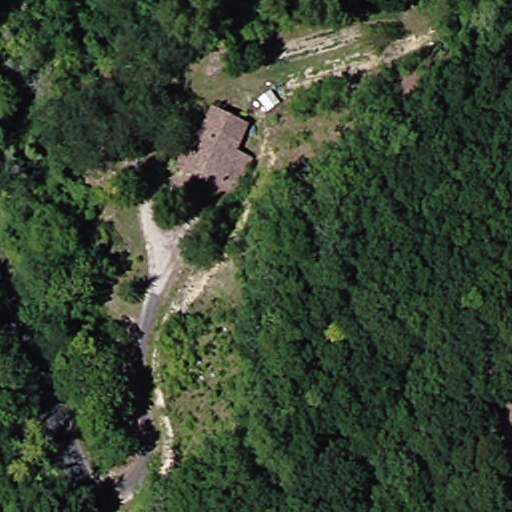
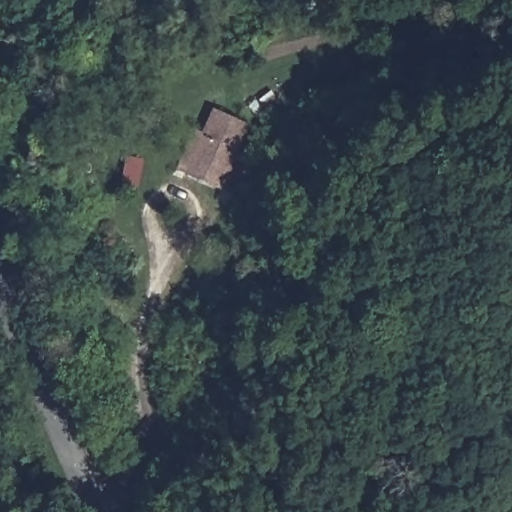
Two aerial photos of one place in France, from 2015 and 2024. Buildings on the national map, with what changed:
unchanged [(227,152),(241,159),(225,197),(176,174),(166,169),(183,130),(192,135),(202,111),(238,128),(227,152)]

